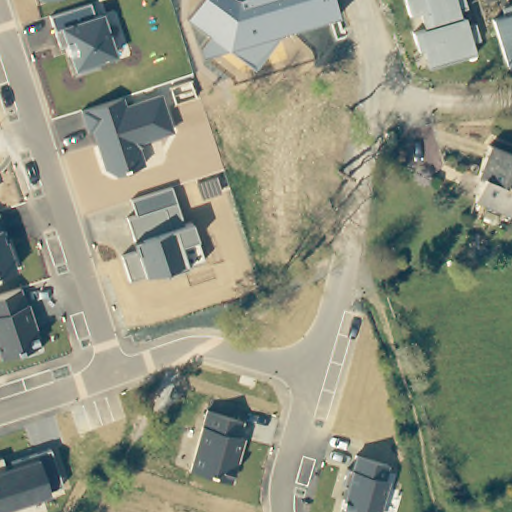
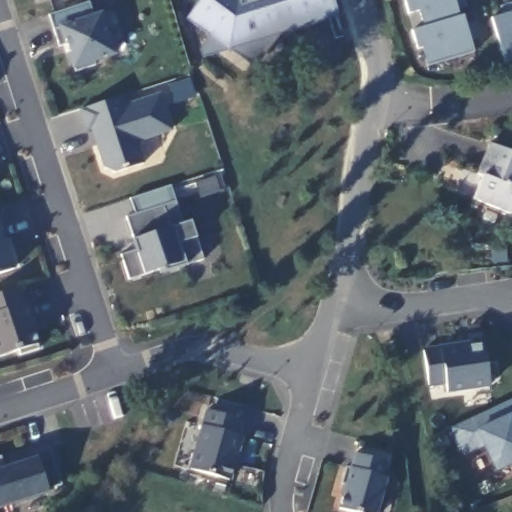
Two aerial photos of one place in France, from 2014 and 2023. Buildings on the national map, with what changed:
unchanged [(280,35),(256,67),(230,51),(202,56),(200,48),(210,38),(189,19),(202,0),(333,0),(338,18),(280,35)]
unchanged [(430,66),(425,51),(418,53),(412,33),(423,29),(418,13),(410,16),(406,0),(459,0),(475,51),(430,66)]
unchanged [(75,69),(68,45),(62,48),(51,15),(91,3),(95,15),(102,12),(117,56),(75,69)]
unchanged [(509,65),(495,18),(512,13),(512,64),(509,65)]
unchanged [(140,140),(146,163),(115,175),(104,169),(94,130),(87,132),(82,110),(124,97),(125,103),(161,93),(172,132),(140,140)]
unchanged [(481,183),(489,151),(512,157),(512,215),(483,207),(489,185),(481,183)]
unchanged [(185,266),(147,276),(132,281),(124,256),(137,251),(128,217),(136,214),(132,200),(172,188),(184,225),(192,223),(197,243),(202,261),(185,266)]
unchanged [(0,225),(16,269),(0,276),(0,225)]
unchanged [(0,356),(0,296),(20,289),(39,344),(1,357),(0,356)]
new [(484,341),(489,389),(446,394),(445,384),(428,387),(425,348),(484,341)]
new [(494,471),(483,448),(463,458),(450,429),(512,399),(512,464),(494,471)]
unchanged [(192,471),(207,411),(245,420),(242,436),(245,437),(232,481),(192,471)]
unchanged [(0,457),(1,456),(4,464),(50,450),(62,485),(0,509),(0,457)]
unchanged [(355,457),(388,465),(386,477),(387,478),(379,512),(342,512),(340,511),(355,457)]

